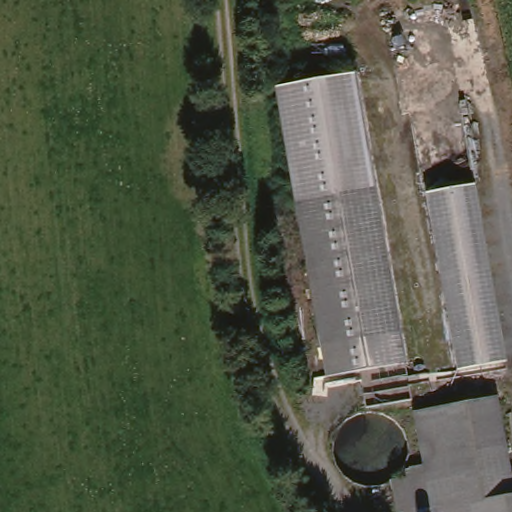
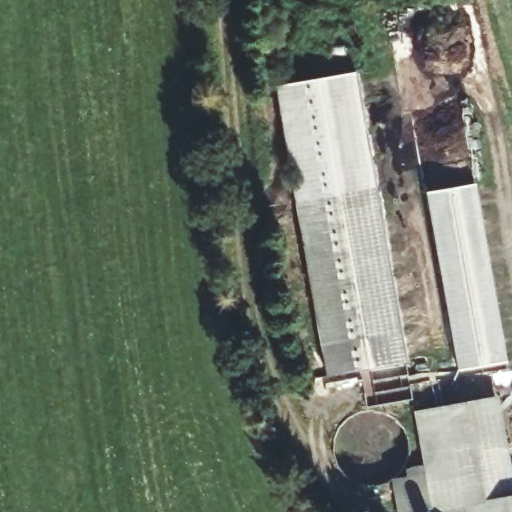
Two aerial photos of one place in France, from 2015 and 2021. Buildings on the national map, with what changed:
unchanged [(356,51),(411,373),(332,384),(279,65),(356,51)]
unchanged [(461,364),(435,184),(476,178),(507,356),(461,364)]
unchanged [(434,510),(414,512),(399,512),(394,476),(408,474),(408,465),(424,464),(415,402),(503,392),(512,463),(512,512),(434,512),(434,510)]

